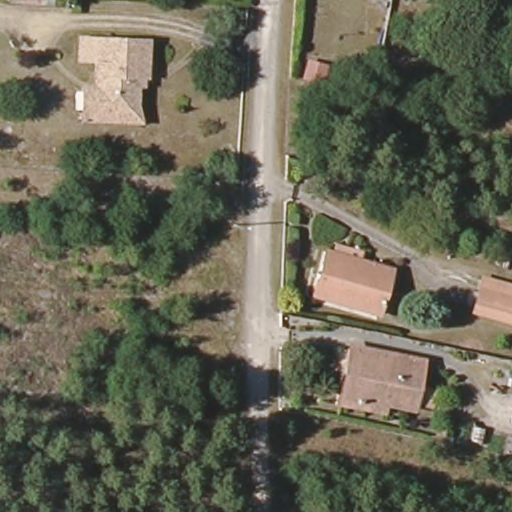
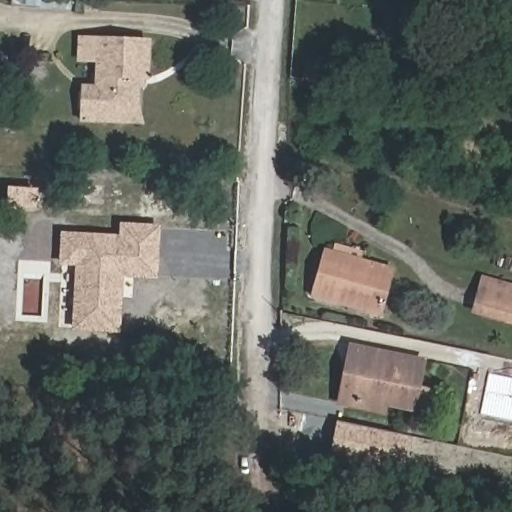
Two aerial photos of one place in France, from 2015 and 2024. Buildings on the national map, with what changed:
unchanged [(102,125),(99,121),(86,120),(87,92),(100,92),(102,44),(153,46),(152,83),(149,83),(149,92),(143,92),(142,111),(146,127),(102,125)]
unchanged [(316,62),(336,67),(331,85),(311,79),(316,62)]
new [(124,278),(121,333),(72,332),(75,265),(59,264),(61,231),(119,235),(119,222),(161,225),(157,279),(124,278)]
unchanged [(383,318),(364,312),(366,307),(339,299),(337,304),(318,298),(330,257),(336,258),(339,248),(368,256),(365,267),(396,276),(383,318)]
unchanged [(479,285),(482,273),(512,282),(512,317),(473,305),(479,285)]
unchanged [(429,404),(413,400),(413,402),(384,396),(383,404),(350,398),(340,396),(347,363),(351,342),(422,356),(417,380),(433,383),(429,404)]
unchanged [(506,445),(495,443),(496,431),(508,432),(506,445)]

